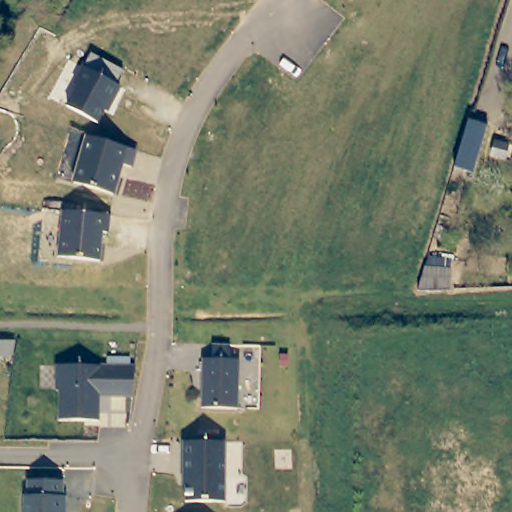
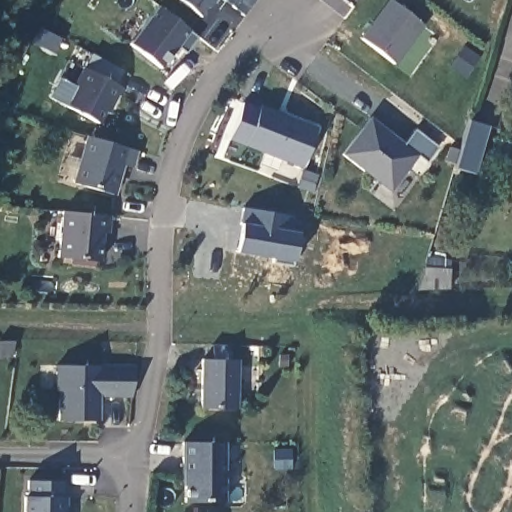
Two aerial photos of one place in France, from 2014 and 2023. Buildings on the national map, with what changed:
new [(173,0),(215,0),(202,19),(173,0)]
new [(393,0),(424,25),(395,64),(360,37),(389,0),(393,0)]
new [(187,51),(179,45),(161,67),(130,43),(159,5),(190,30),(198,37),(187,51)]
unchanged [(118,84),(123,87),(110,111),(105,110),(99,122),(65,106),(84,68),(90,52),(125,69),(118,84)]
new [(303,167),(229,139),(244,100),(260,106),(262,104),(319,126),(303,167)]
new [(404,142),(416,129),(438,147),(426,161),(419,156),(391,191),(342,153),(371,116),(404,142)]
unchanged [(470,174),(451,168),(458,144),(465,120),(484,126),(470,174)]
unchanged [(134,150),(135,151),(130,167),(121,164),(112,195),(73,183),(86,136),(134,150)]
unchanged [(109,216),(108,233),(102,232),(99,262),(56,257),(60,211),(109,216)]
unchanged [(445,271),(444,290),(416,291),(419,272),(445,271)]
unchanged [(238,406),(201,405),(203,356),(212,357),(213,342),(230,342),(230,357),(239,357),(238,406)]
unchanged [(135,363),(133,393),(104,393),(104,386),(99,386),(99,418),(59,417),(59,387),(56,387),(56,362),(135,363)]
unchanged [(224,439),(224,499),(184,499),(185,472),(183,472),(183,439),(224,439)]
unchanged [(62,477),(62,493),(65,493),(64,512),(61,512),(23,512),(23,493),(26,493),(27,477),(62,477)]

